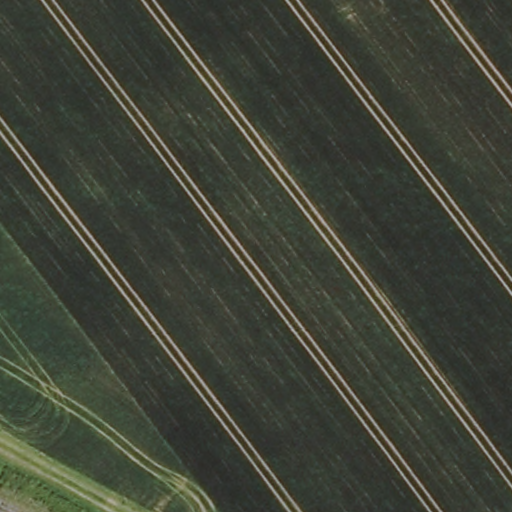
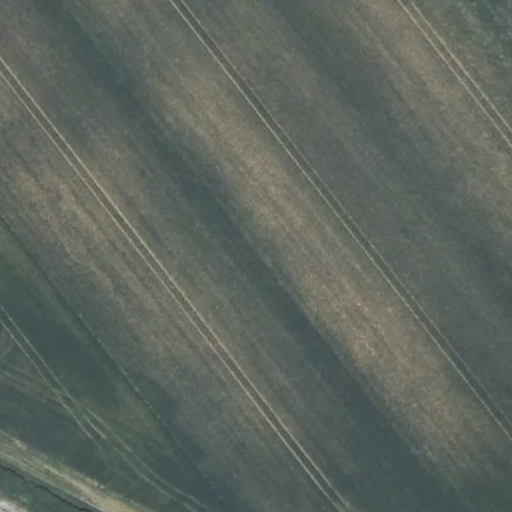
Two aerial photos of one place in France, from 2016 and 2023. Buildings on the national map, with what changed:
[]

